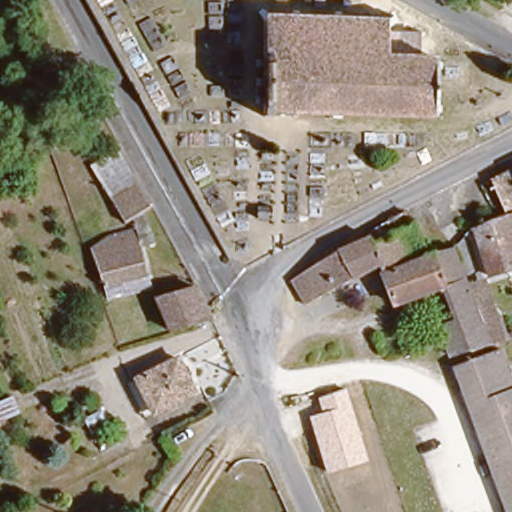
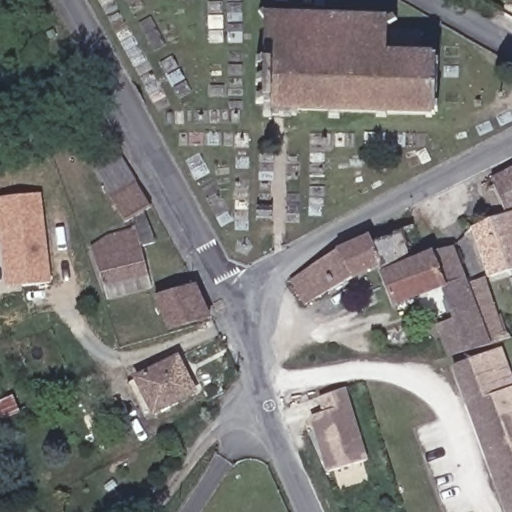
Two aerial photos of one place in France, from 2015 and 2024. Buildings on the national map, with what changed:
unchanged [(267,59),(268,19),(261,15),(266,7),(277,15),(298,16),(298,10),(304,10),(303,17),(333,18),(333,12),(345,12),(345,19),(382,21),(394,13),(398,19),(387,27),(387,30),(423,30),(425,28),(428,32),(425,34),(425,52),(433,52),(433,57),(437,57),(437,61),(442,61),(442,65),(442,70),(440,70),(439,70),(438,105),(441,105),(441,113),(435,114),(435,118),(430,118),(430,113),(391,113),(391,117),(380,117),(380,111),(344,109),(344,116),(333,115),(333,107),(300,107),(300,114),(293,114),(290,106),(280,106),(276,113),(276,116),(267,116),(267,106),(260,105),(261,79),(268,79),(268,66),(260,66),(260,59),(267,59)]
unchanged [(62,102),(66,115),(50,120),(46,108),(62,102)]
unchanged [(144,208),(117,220),(89,162),(115,149),(144,208)]
unchanged [(512,168),(512,212),(504,215),(488,180),(512,168)]
new [(40,194),(50,282),(5,287),(0,237),(0,197),(40,194)]
unchanged [(374,264),(300,305),(288,280),(325,254),(367,234),(366,231),(401,210),(407,221),(411,219),(426,253),(422,255),(377,273),(374,264)]
unchanged [(512,212),(512,224),(507,226),(512,241),(512,270),(505,272),(488,277),(473,228),(504,215),(512,212)]
unchanged [(141,285),(99,298),(86,253),(106,245),(107,248),(130,241),(141,285)]
unchanged [(460,362),(461,365),(452,368),(451,368),(446,352),(440,336),(436,323),(453,316),(441,285),(390,304),(377,273),(422,255),(426,253),(435,250),(441,249),(450,249),(457,268),(475,313),(476,314),(482,330),(486,341),(480,343),(471,345),(475,358),(460,362)]
unchanged [(165,329),(153,298),(191,285),(207,315),(165,329)]
unchanged [(502,304),(510,326),(490,333),(482,312),(502,304)]
unchanged [(494,346),(505,341),(512,362),(512,512),(505,512),(452,376),(503,360),(494,346)]
unchanged [(194,390),(154,410),(135,374),(174,353),(194,390)]
unchanged [(326,471),(307,416),(321,412),(317,397),(346,388),(367,460),(326,471)]

